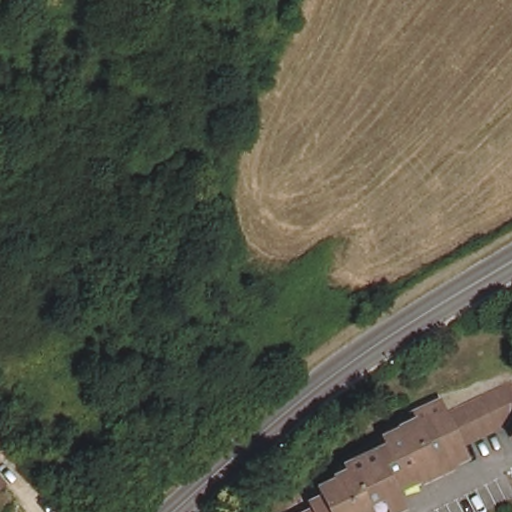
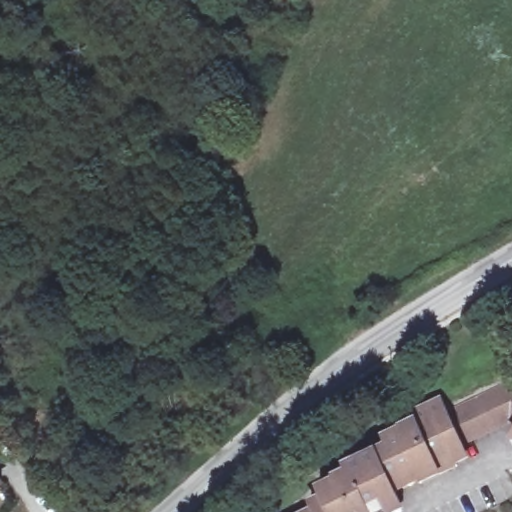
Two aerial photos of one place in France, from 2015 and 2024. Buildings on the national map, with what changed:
unchanged [(327,501),(325,494),(342,486),(340,483),(355,477),(352,468),(393,449),(391,442),(407,435),(407,432),(420,427),(418,421),(448,407),(454,418),(512,391),(512,431),(470,450),(472,455),(459,460),(462,467),(425,485),(422,478),(396,489),(403,505),(392,511),(393,512),(318,512),(316,507),(327,501)]
unchanged [(0,486),(0,473),(6,480),(0,486)]

